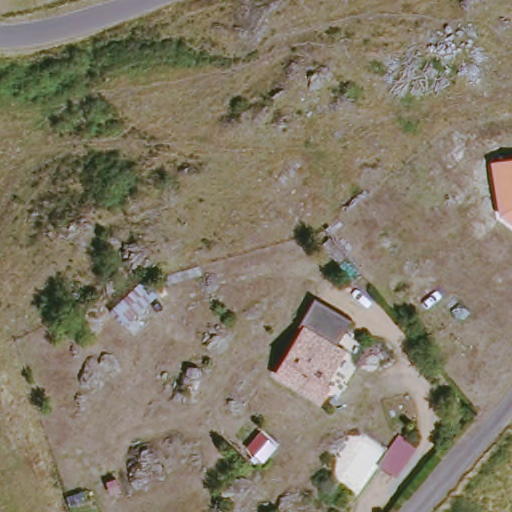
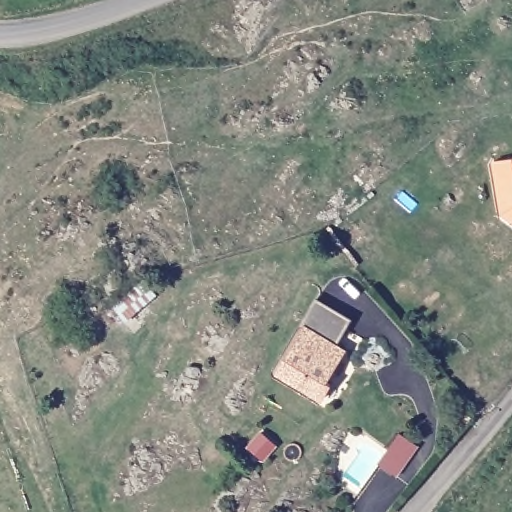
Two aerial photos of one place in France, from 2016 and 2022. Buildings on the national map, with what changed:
unchanged [(493,164),(512,160),(512,226),(502,219),(493,164)]
unchanged [(147,277),(175,306),(165,319),(151,305),(131,327),(116,306),(147,277)]
unchanged [(356,317),(343,346),(351,350),(338,385),(343,387),(336,403),(282,382),(304,330),(298,327),(312,299),(356,317)]
unchanged [(425,437),(402,466),(385,451),(408,423),(425,437)]

